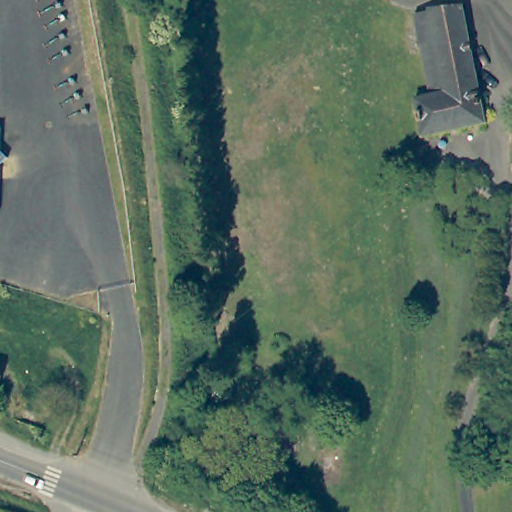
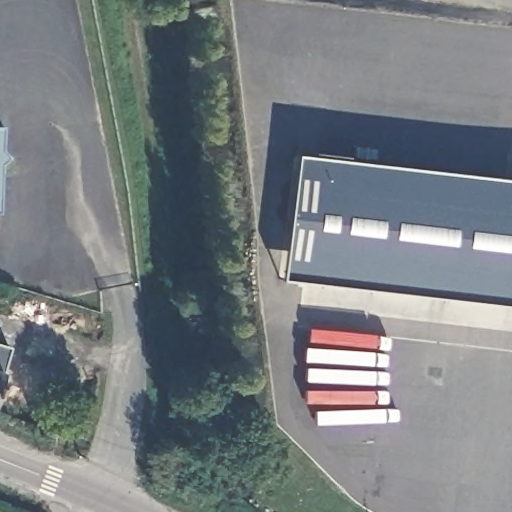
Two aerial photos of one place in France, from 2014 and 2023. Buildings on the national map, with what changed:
demolished [(487,125),(422,140),(414,100),(422,99),(429,98),(419,44),(434,41),(431,19),(430,10),(463,8),(487,125)]
unchanged [(6,151),(14,160),(5,170),(3,214),(0,214),(0,130),(6,130),(6,151)]
new [(273,277),(289,154),(512,179),(512,305),(273,277)]
unchanged [(0,378),(0,374),(1,374),(0,378)]
unchanged [(58,418),(53,431),(15,417),(21,404),(58,418)]

